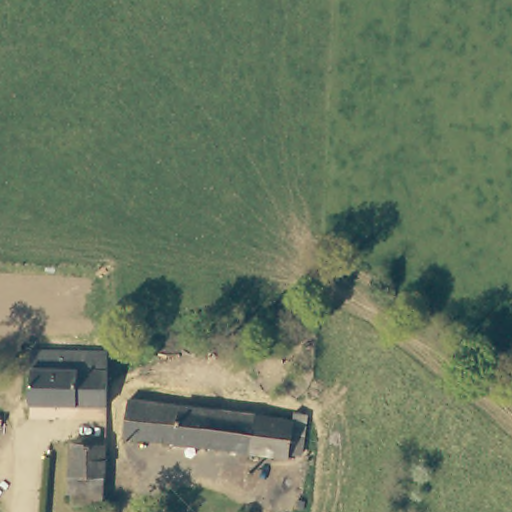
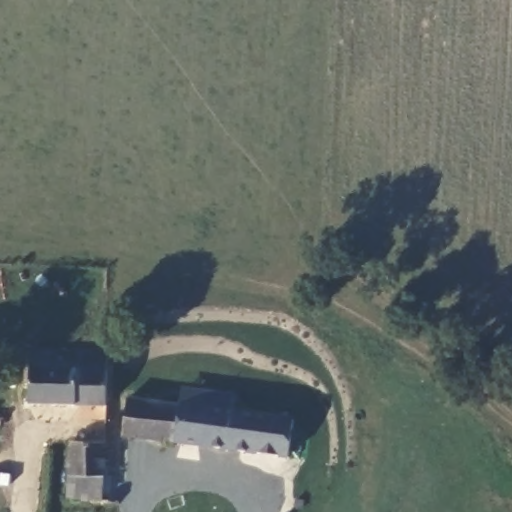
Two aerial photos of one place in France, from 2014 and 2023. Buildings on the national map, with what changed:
unchanged [(108,407),(32,409),(29,354),(105,351),(109,351),(110,394),(107,393),(108,407)]
unchanged [(136,436),(139,396),(190,402),(186,442),(136,436)]
unchanged [(186,442),(190,402),(305,417),(303,456),(186,442)]
unchanged [(104,446),(102,503),(64,500),(68,444),(104,446)]

